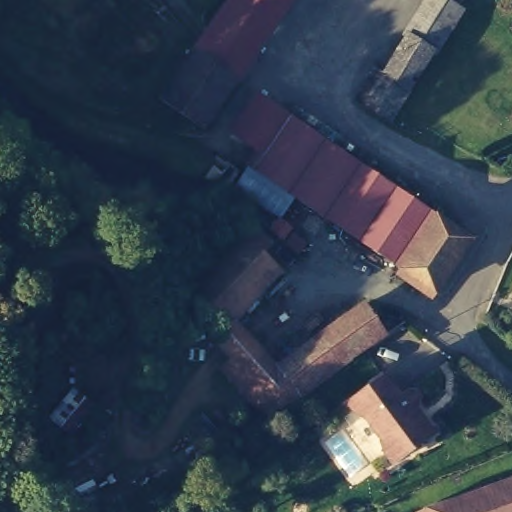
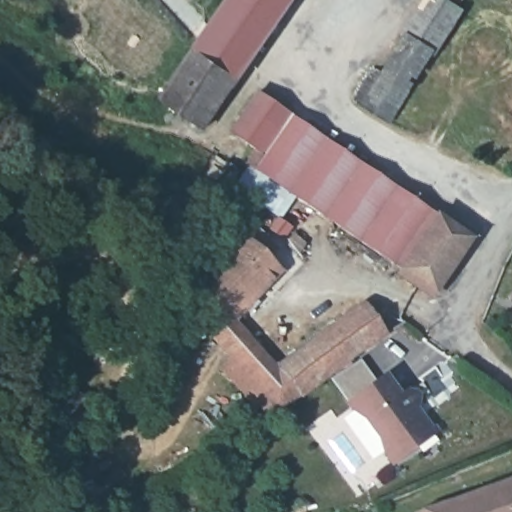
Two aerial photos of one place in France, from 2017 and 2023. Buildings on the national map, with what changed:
unchanged [(292,0),(254,55),(210,25),(228,0),(292,0)]
unchanged [(405,31),(424,0),(454,0),(460,4),(432,47),(429,45),(409,34),(405,31)]
unchanged [(210,25),(254,55),(235,80),(194,50),(197,45),(210,25)]
unchanged [(384,115),(365,103),(409,34),(429,45),(384,115)]
unchanged [(194,50),(235,80),(201,129),(160,100),(194,50)]
unchanged [(242,144),(240,146),(235,143),(237,140),(225,132),(252,95),(255,96),(262,85),(280,96),(272,107),(283,115),(255,152),(250,150),(242,144)]
unchanged [(295,102),(320,119),(310,133),(285,116),(295,102)]
unchanged [(255,152),(283,115),(310,133),(414,205),(465,239),(427,295),(241,166),(250,150),(255,152)]
unchanged [(190,293),(245,236),(282,271),(234,322),(227,328),(225,326),(190,293)]
unchanged [(225,326),(227,328),(234,322),(279,367),(305,345),(305,347),(365,304),(387,332),(404,320),(407,322),(362,354),(281,408),(214,338),(225,326)]
unchanged [(407,440),(409,445),(386,460),(380,451),(375,436),(360,415),(351,408),(345,400),(379,375),(395,395),(400,394),(409,392),(414,397),(407,405),(424,427),(407,440)]
unchanged [(151,416),(135,409),(142,393),(157,399),(151,416)]
unchanged [(102,443),(114,460),(70,497),(61,480),(102,443)]
unchanged [(438,511),(432,496),(460,487),(466,502),(512,487),(512,512),(435,512),(438,511)]
unchanged [(425,512),(404,512),(402,508),(422,500),(425,512)]

